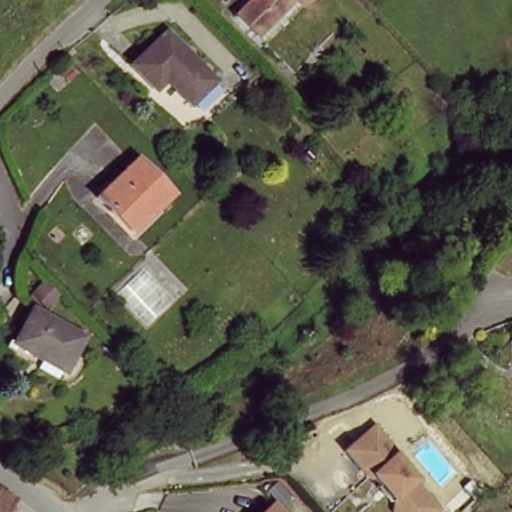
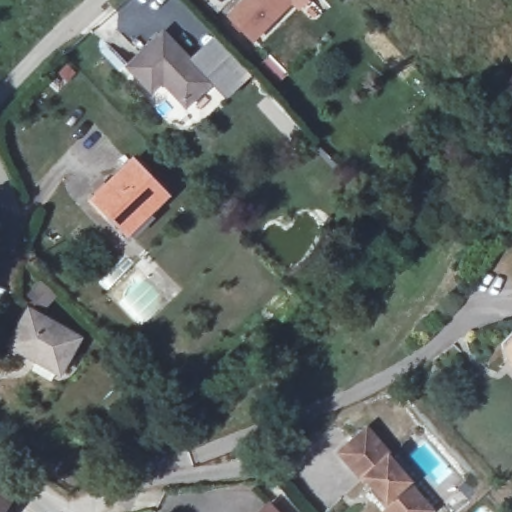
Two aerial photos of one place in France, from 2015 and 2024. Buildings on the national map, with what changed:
unchanged [(263,43),(232,10),(243,0),(306,0),(263,43)]
unchanged [(187,110),(164,82),(150,94),(128,67),(162,33),(210,86),(187,110)]
unchanged [(167,201),(153,215),(148,210),(123,235),(95,204),(133,166),(167,201)]
unchanged [(33,310),(79,341),(59,374),(13,342),(33,310)]
unchanged [(390,512),(385,507),(391,502),(370,478),(367,480),(343,453),(370,429),(394,456),(392,458),(413,482),(412,483),(436,511),(435,512),(390,512)]
unchanged [(1,512),(0,512),(0,494),(8,500),(1,512)]
unchanged [(282,512),(276,512),(279,509),(282,512)]

